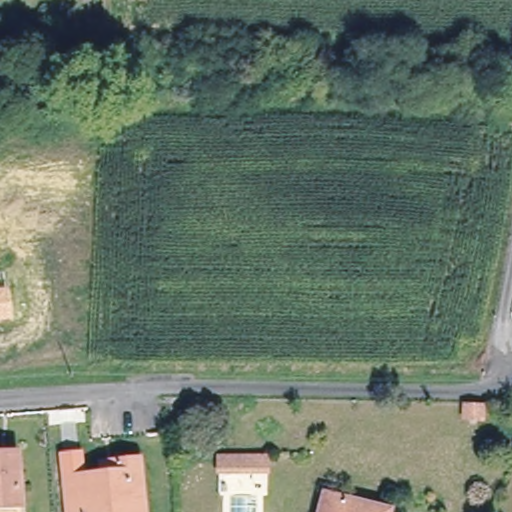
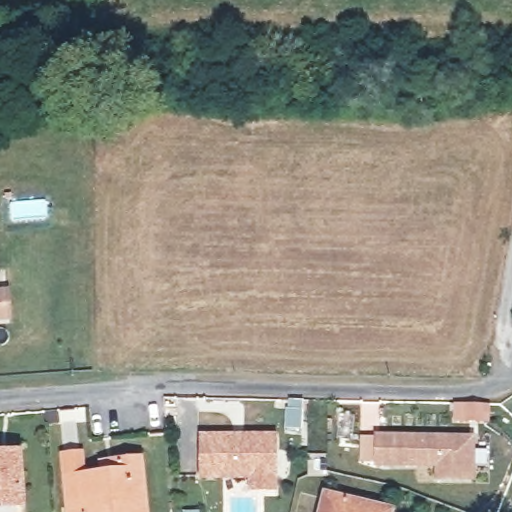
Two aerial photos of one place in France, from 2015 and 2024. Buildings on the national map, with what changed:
unchanged [(10,288),(13,319),(0,320),(0,289),(10,288)]
unchanged [(481,419),(466,418),(466,402),(481,403),(481,419)]
new [(277,432),(278,489),(248,490),(248,478),(201,477),(201,429),(277,432)]
new [(374,433),(469,434),(468,475),(434,475),(434,462),(373,461),(374,433)]
unchanged [(19,451),(23,503),(0,505),(0,453),(19,451)]
unchanged [(149,512),(73,512),(68,458),(85,457),(88,479),(109,476),(108,467),(120,466),(144,463),(149,512)]
unchanged [(388,508),(387,512),(318,512),(323,492),(388,508)]
demolished [(256,494),(255,512),(230,512),(230,493),(256,494)]

